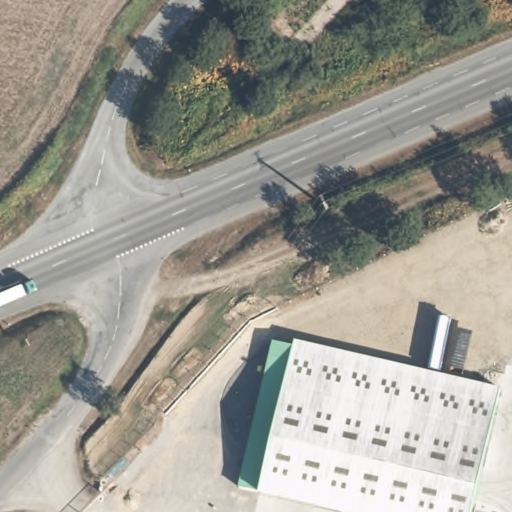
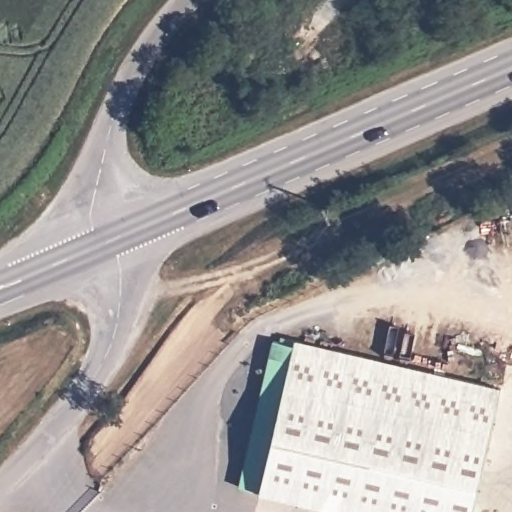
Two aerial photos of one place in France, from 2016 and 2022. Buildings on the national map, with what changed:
unchanged [(499,394),(472,512),(345,512),(240,487),(273,347),(292,351),(293,346),(499,394)]

